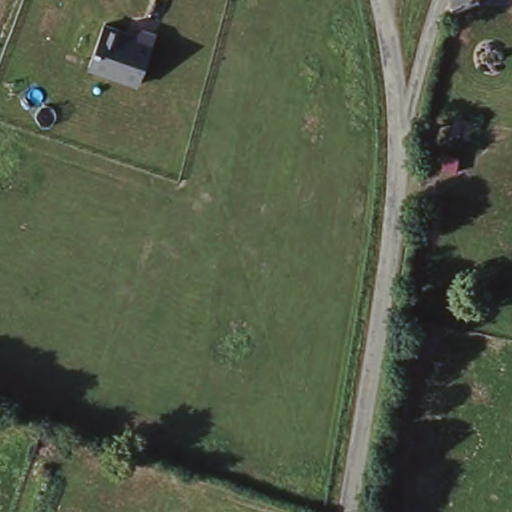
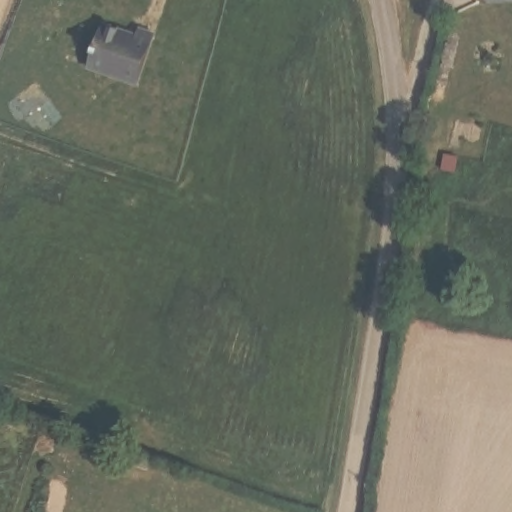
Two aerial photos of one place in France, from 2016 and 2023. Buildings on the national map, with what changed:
unchanged [(157,34),(141,81),(92,66),(109,18),(157,34)]

